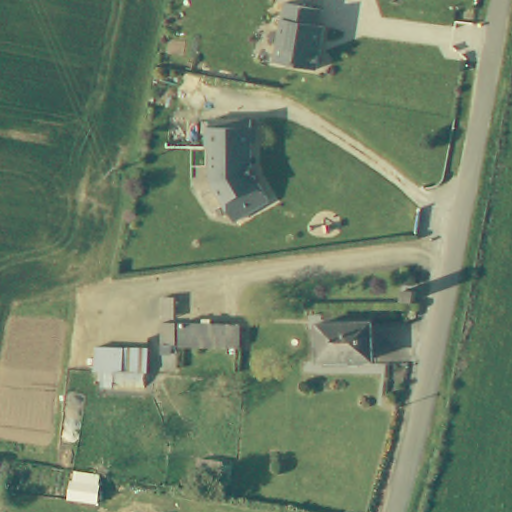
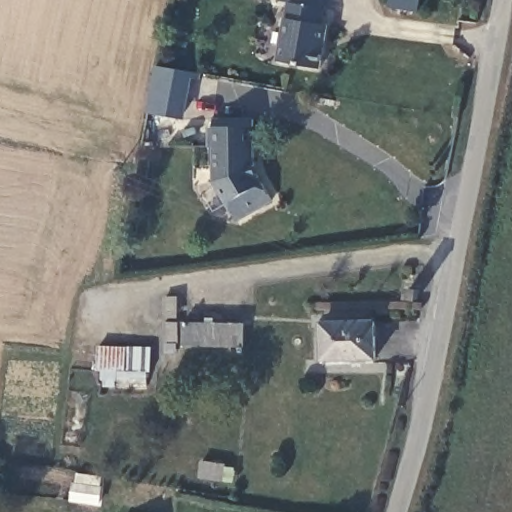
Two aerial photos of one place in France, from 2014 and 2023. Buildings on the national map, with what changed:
new [(288,2),(279,1),(280,0),(322,0),(321,8),(288,2)]
unchanged [(319,69),(278,61),(288,2),(323,9),(320,24),(326,25),(319,69)]
new [(201,82),(193,81),(185,121),(148,115),(157,66),(201,74),(201,82)]
unchanged [(250,166),(253,176),(268,200),(234,221),(211,183),(210,142),(205,142),(205,128),(209,128),(209,121),(249,120),(249,127),(254,127),(254,141),(250,141),(250,166)]
unchanged [(319,363),(319,357),(320,322),(374,321),(375,357),(361,357),(361,362),(319,363)]
unchanged [(242,342),(182,342),(182,322),(242,322),(242,342)]
unchanged [(97,345),(150,348),(148,372),(96,368),(97,345)]

